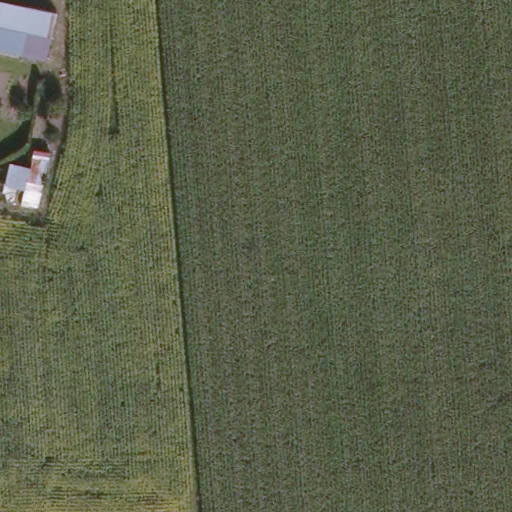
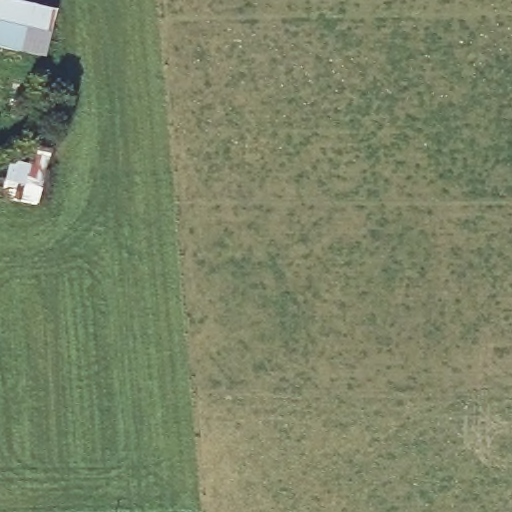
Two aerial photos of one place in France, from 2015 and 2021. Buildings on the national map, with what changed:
unchanged [(31,4),(32,0),(60,0),(46,53),(0,44),(0,0),(15,0),(31,4)]
unchanged [(32,165),(35,150),(50,152),(39,204),(5,197),(10,161),(32,165)]

